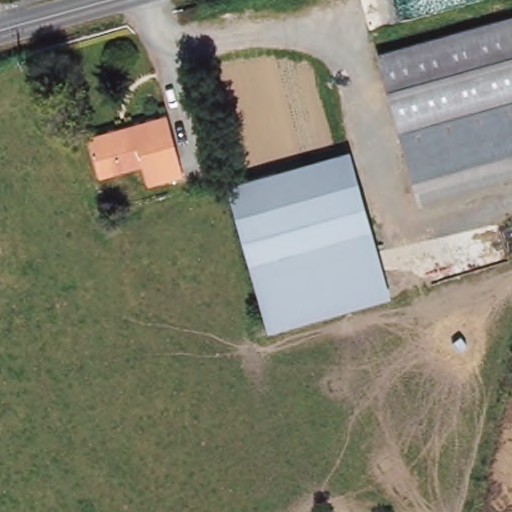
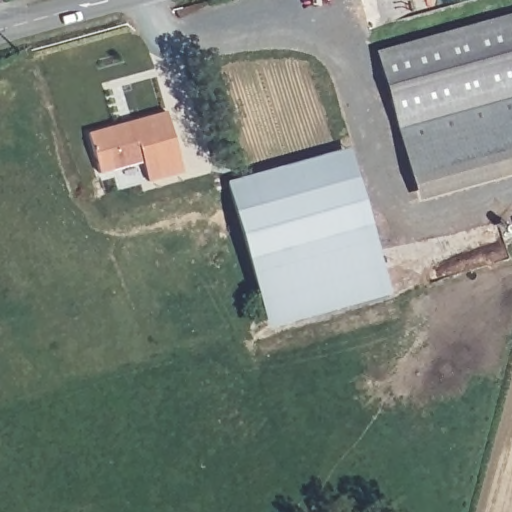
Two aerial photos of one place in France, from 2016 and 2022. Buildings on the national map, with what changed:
unchanged [(512,15),(512,148),(413,174),(380,51),(512,15)]
unchanged [(182,175),(145,184),(139,166),(98,177),(86,132),(113,126),(132,121),(165,113),(182,175)]
unchanged [(512,166),(417,191),(413,174),(512,148),(512,166)]
unchanged [(350,150),(392,299),(266,333),(227,185),(350,150)]
unchanged [(417,191),(512,166),(512,181),(422,206),(417,191)]

